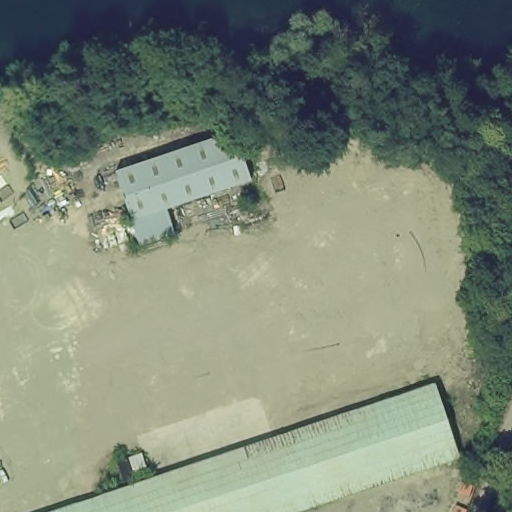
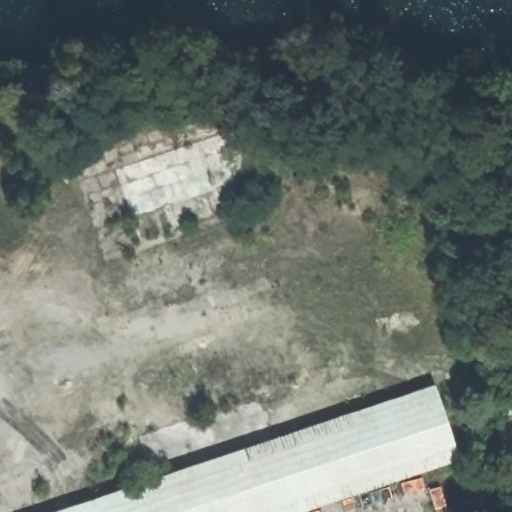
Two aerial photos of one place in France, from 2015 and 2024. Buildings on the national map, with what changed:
demolished [(234,127),(251,176),(168,209),(175,233),(141,242),(119,168),(234,127)]
unchanged [(458,456),(292,512),(38,512),(426,382),(458,456)]

